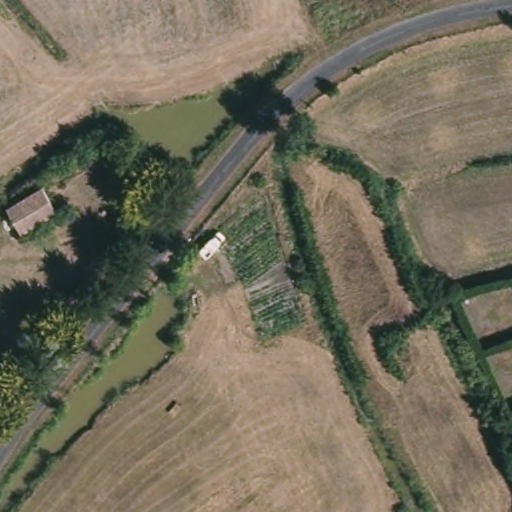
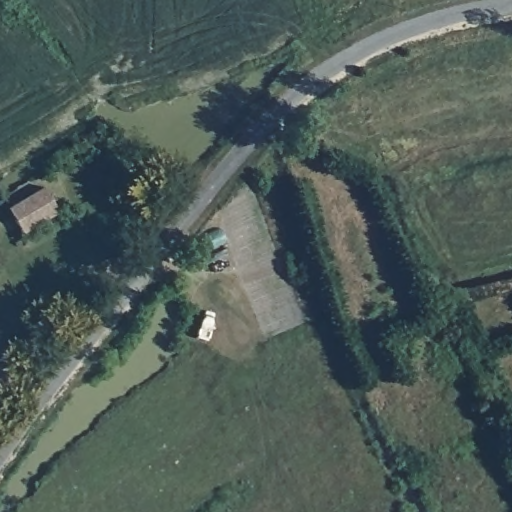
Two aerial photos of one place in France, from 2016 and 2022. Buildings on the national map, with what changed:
unchanged [(61,212),(26,232),(10,209),(45,188),(61,212)]
unchanged [(0,377),(0,367),(5,371),(0,377)]

